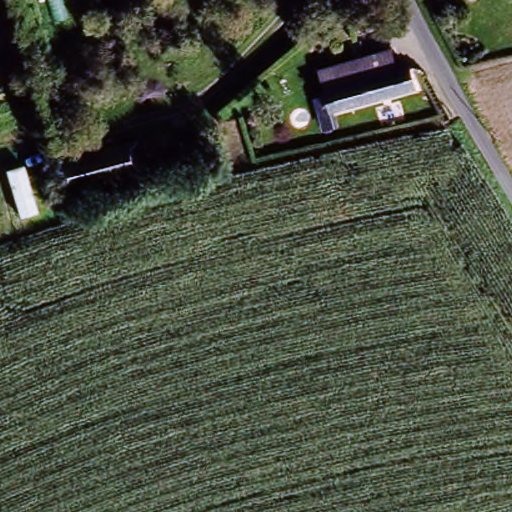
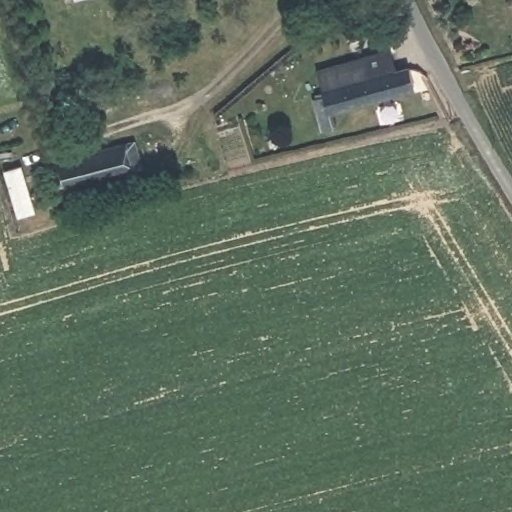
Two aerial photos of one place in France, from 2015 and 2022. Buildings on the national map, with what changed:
unchanged [(303,70),(332,64),(333,69),(361,62),(360,56),(388,50),(393,71),(407,68),(412,88),(325,108),(330,133),(320,135),(303,70)]
unchanged [(126,141),(135,170),(64,193),(54,163),(126,141)]

